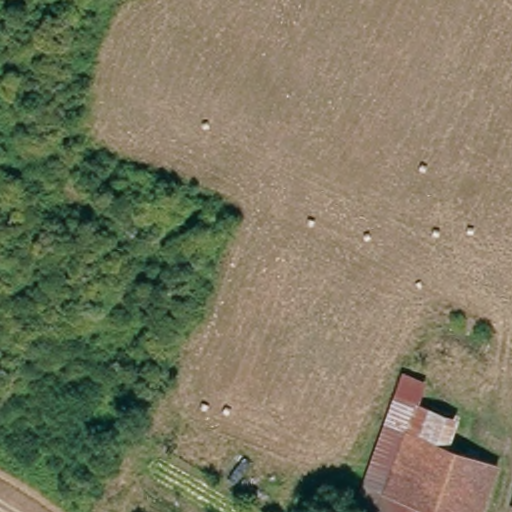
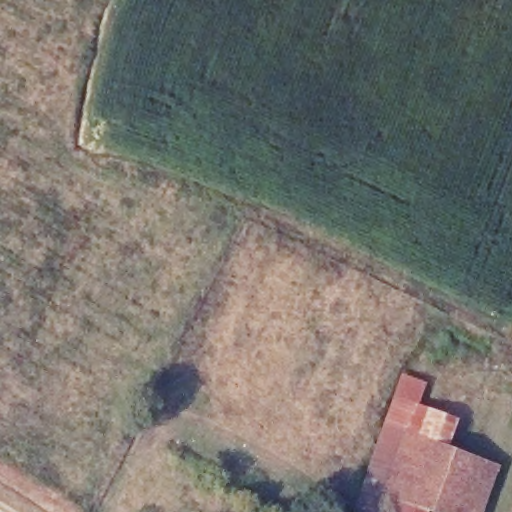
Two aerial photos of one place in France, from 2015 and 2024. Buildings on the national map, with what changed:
unchanged [(468,453),(505,468),(491,512),(438,512),(375,487),(367,485),(410,375),(427,382),(431,385),(423,405),(463,421),(453,447),(468,453)]

